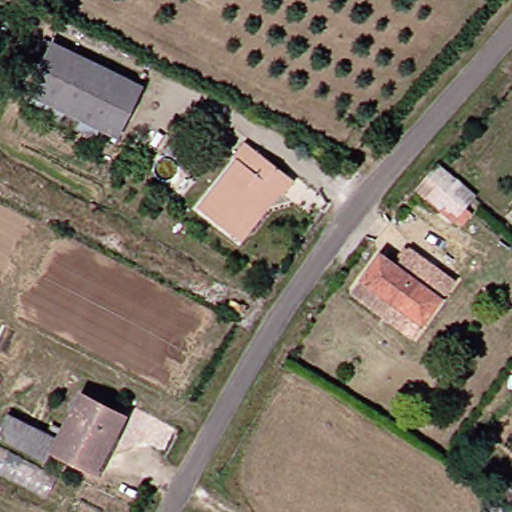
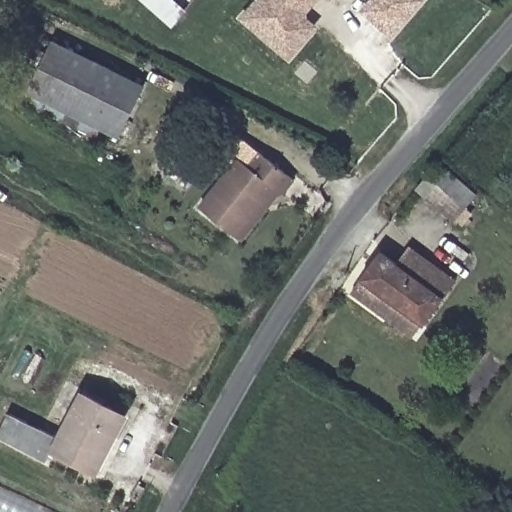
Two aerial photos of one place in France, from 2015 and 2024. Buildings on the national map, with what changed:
new [(305,18),(318,30),(289,61),(240,18),(257,0),(320,0),(305,18)]
new [(330,1),(329,0),(332,0),(330,1)]
new [(369,0),(425,0),(426,0),(392,40),(359,12),(369,0)]
unchanged [(118,141),(26,93),(50,43),(140,91),(118,141)]
unchanged [(246,250),(237,241),(202,212),(239,163),(231,157),(245,137),(259,150),(298,183),(284,199),(277,191),(263,208),(269,216),(246,250)]
unchanged [(440,165),(443,167),(452,158),(467,170),(458,179),(479,196),(456,223),(417,191),(440,165)]
unchanged [(362,282),(381,253),(399,264),(413,244),(459,275),(426,325),(362,282)]
unchanged [(352,297),(362,282),(426,325),(414,340),(352,297)]
unchanged [(0,436),(10,414),(63,436),(81,394),(124,413),(99,466),(56,448),(49,463),(0,442),(0,436)]
new [(0,512),(0,486),(54,512),(0,512)]

